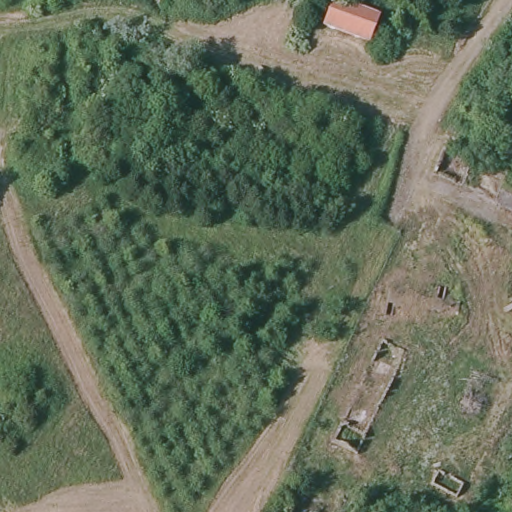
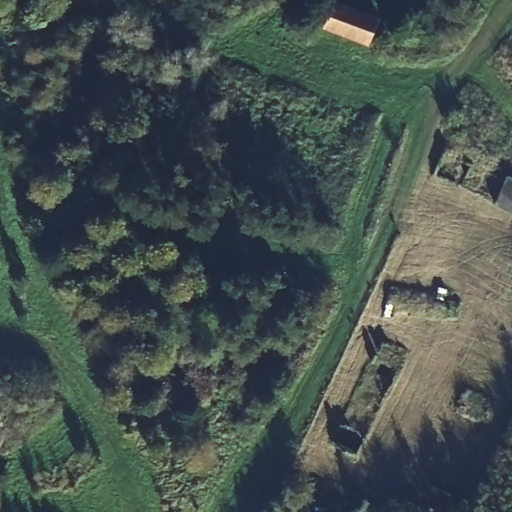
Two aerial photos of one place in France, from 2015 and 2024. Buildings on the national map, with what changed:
unchanged [(349,0),(377,11),(366,42),(319,26),(330,0),(349,0)]
unchanged [(512,175),(512,209),(490,197),(503,171),(512,175)]
unchanged [(0,424),(0,390),(19,403),(0,424)]

